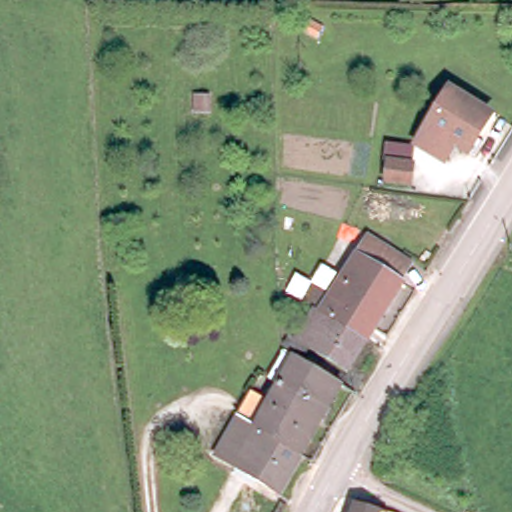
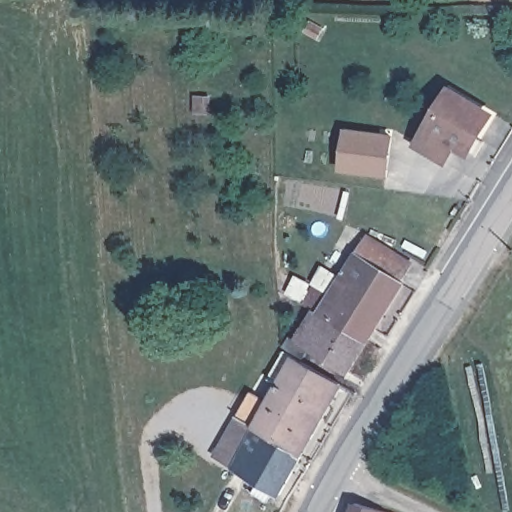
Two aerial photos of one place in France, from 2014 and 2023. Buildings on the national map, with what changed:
unchanged [(464,144),(450,136),(440,154),(437,152),(439,150),(416,135),(446,84),(486,107),(464,144)]
unchanged [(202,109),(204,94),(217,95),(216,110),(202,109)]
new [(389,177),(339,171),(344,127),(393,134),(389,177)]
demolished [(390,177),(391,159),(400,160),(416,161),(415,180),(390,179),(390,177)]
unchanged [(312,310),(302,303),(313,284),(337,296),(346,279),(340,276),(366,235),(387,248),(386,251),(408,264),(399,280),(401,281),(365,340),(312,311),(312,310)]
unchanged [(365,340),(345,372),(308,349),(301,360),(282,348),(290,336),(295,339),(312,311),(365,340)]
unchanged [(228,465),(213,456),(235,417),(250,393),(270,405),(280,388),(276,385),(293,357),(311,368),(314,369),(337,383),(298,454),(276,493),(232,467),(228,465)]
unchanged [(363,503),(391,512),(360,512),(363,503)]

